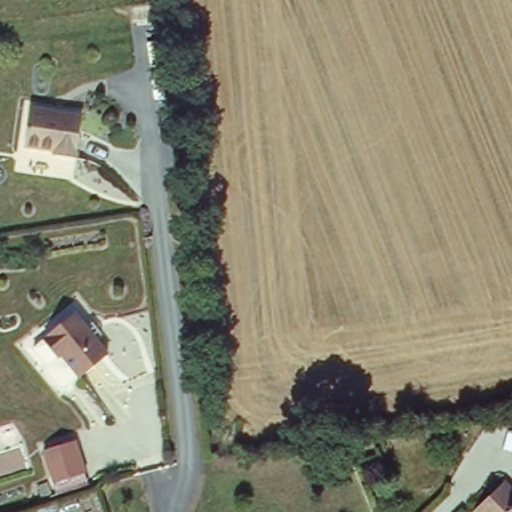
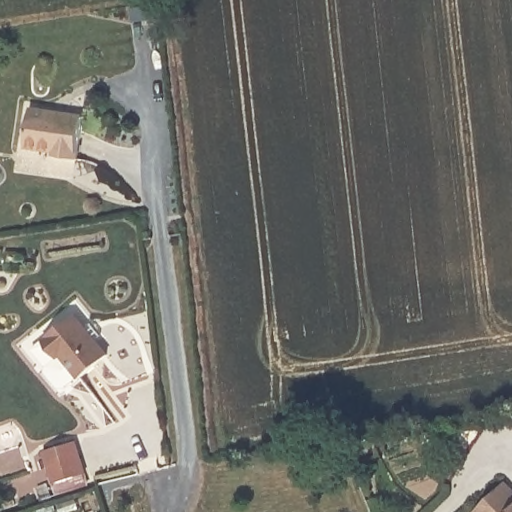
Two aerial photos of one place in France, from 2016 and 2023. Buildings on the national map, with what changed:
unchanged [(75,157),(54,153),(54,149),(24,144),(30,106),(82,114),(75,157)]
unchanged [(79,376),(61,353),(57,356),(43,339),(47,335),(46,334),(73,312),(107,354),(79,376)]
unchanged [(92,485),(58,496),(43,450),(78,439),(92,485)]
unchanged [(512,488),(512,512),(467,512),(466,511),(501,477),(512,488)]

